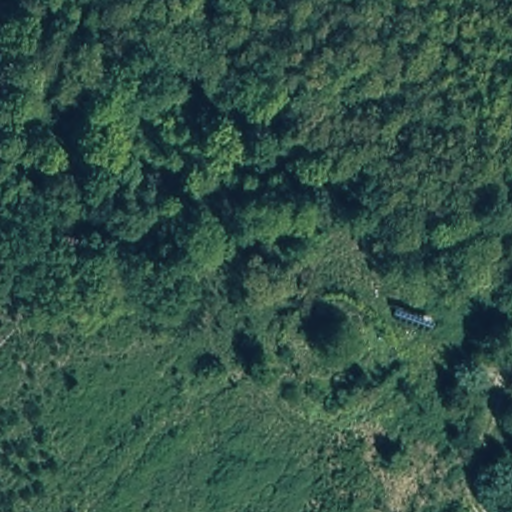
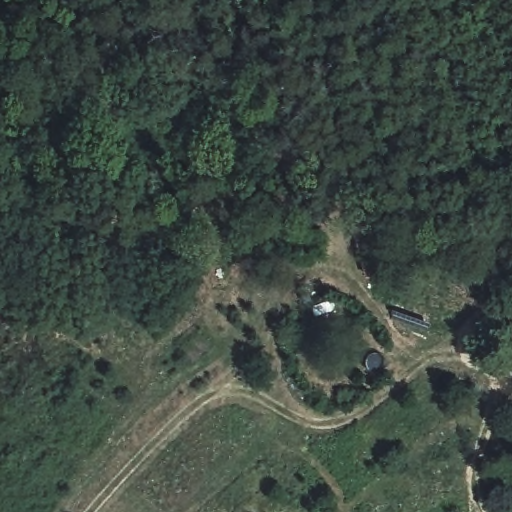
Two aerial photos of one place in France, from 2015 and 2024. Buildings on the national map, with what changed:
[]

